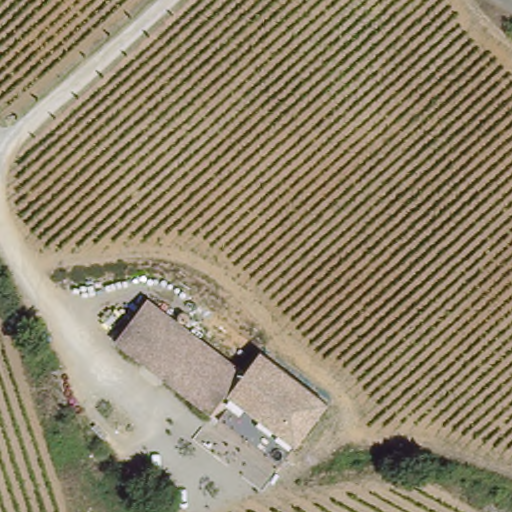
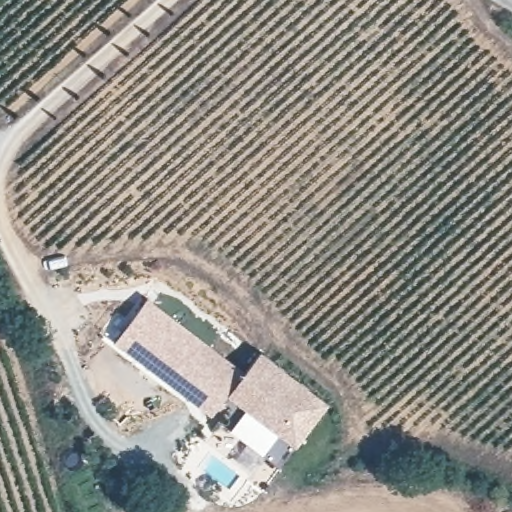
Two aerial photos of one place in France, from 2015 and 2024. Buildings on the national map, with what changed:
unchanged [(141,298),(241,370),(208,416),(110,343),(141,298)]
unchanged [(247,374),(261,355),(328,409),(285,468),(208,416),(241,370),(247,374)]

